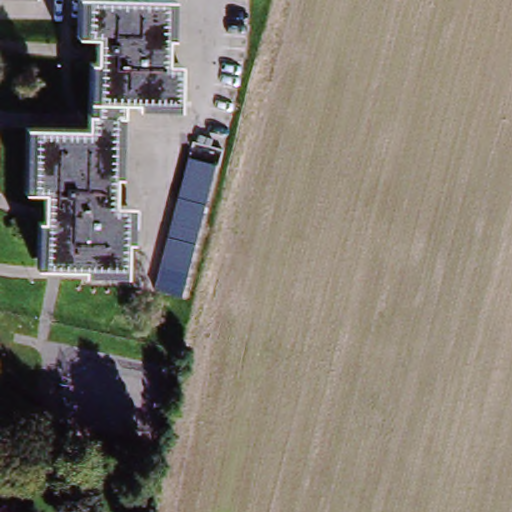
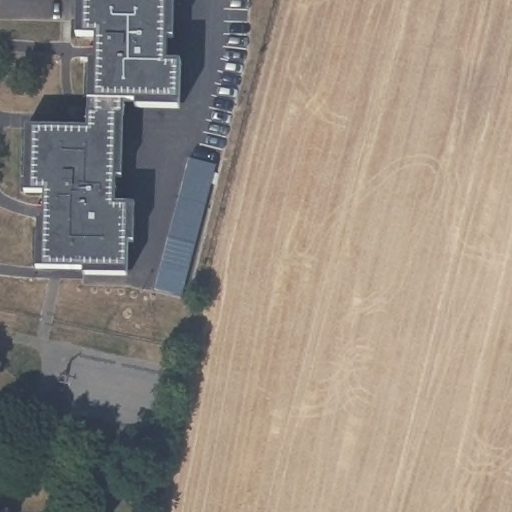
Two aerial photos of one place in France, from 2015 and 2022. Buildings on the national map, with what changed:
unchanged [(82,37),(83,0),(152,0),(169,0),(167,65),(179,65),(178,105),(124,104),(123,117),(117,116),(95,116),(96,37),(82,37)]
unchanged [(115,206),(129,207),(126,271),(43,269),(45,194),(31,194),(32,130),(88,130),(88,115),(95,116),(117,116),(115,206)]
unchanged [(220,161),(187,293),(160,286),(194,155),(220,161)]

